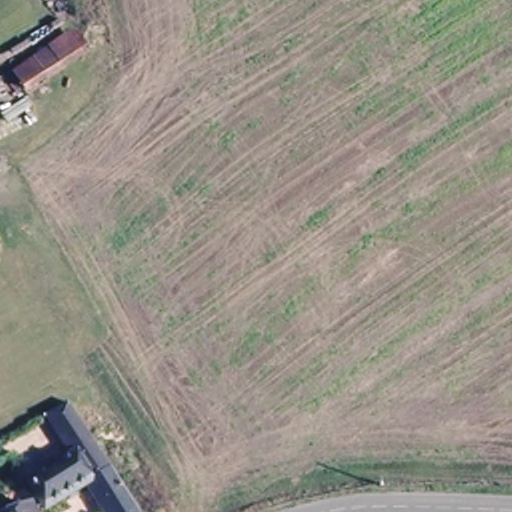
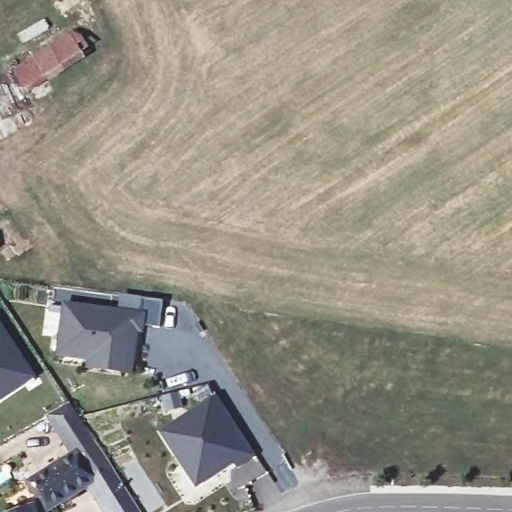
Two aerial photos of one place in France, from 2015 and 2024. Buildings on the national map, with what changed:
unchanged [(28,85),(16,68),(70,30),(81,48),(28,85)]
new [(58,354),(64,304),(140,314),(142,297),(163,300),(159,327),(142,325),(142,330),(137,330),(136,338),(133,357),(131,372),(88,366),(89,358),(58,354)]
new [(0,398),(0,327),(33,376),(0,398)]
new [(179,391),(182,406),(167,410),(163,395),(179,391)]
new [(237,467),(233,461),(200,482),(166,429),(218,396),(238,428),(256,455),(237,467)]
unchanged [(33,487),(79,458),(52,416),(72,402),(87,426),(143,512),(108,512),(94,489),(58,512),(40,512),(46,509),(33,487)]
unchanged [(39,512),(38,512),(39,511),(39,512)]

